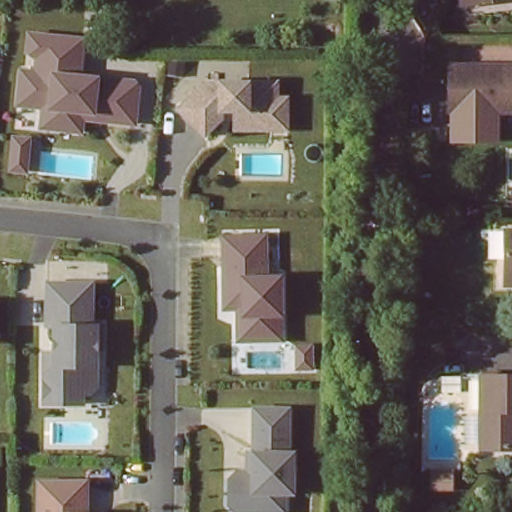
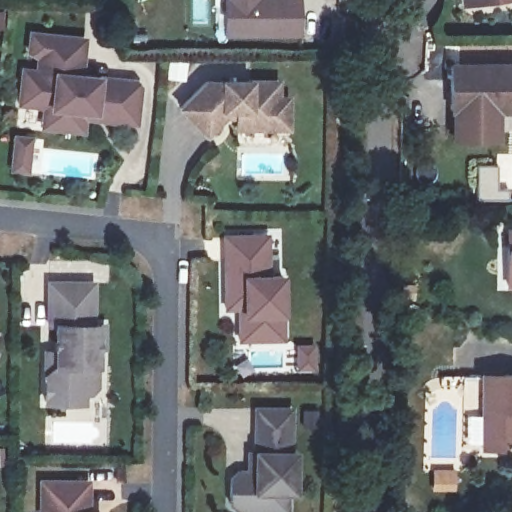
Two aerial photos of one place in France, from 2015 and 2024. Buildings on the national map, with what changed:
new [(225,16),(225,0),(267,0),(267,1),(298,0),(298,39),(233,39),(225,39),(225,16)]
unchanged [(458,0),(512,0),(475,4),(459,6),(458,0)]
unchanged [(81,39),(77,75),(136,81),(133,122),(99,118),(91,109),(83,107),(80,130),(51,126),(53,106),(18,102),(28,33),(81,39)]
unchanged [(452,110),(452,66),(512,66),(512,110),(452,110)]
unchanged [(232,130),(233,120),(224,120),(208,137),(176,109),(203,79),(220,77),(253,79),(280,79),(280,96),(291,96),(291,131),(232,130)]
new [(476,165),(498,164),(499,199),(476,198),(476,165)]
unchanged [(503,283),(503,251),(504,229),(512,230),(512,284),(503,283)]
unchanged [(266,273),(281,273),(283,313),(285,342),(236,342),(236,312),(221,312),(221,236),(266,234),(266,273)]
unchanged [(95,281),(93,323),(99,323),(98,368),(98,390),(87,398),(87,404),(40,403),(41,348),(53,349),(53,327),(43,327),(45,280),(95,281)]
unchanged [(512,374),(512,447),(477,446),(480,372),(512,374)]
unchanged [(296,450),(296,495),(288,495),(288,512),(229,512),(229,476),(246,465),(250,406),(293,406),(291,450),(296,450)]
unchanged [(86,512),(36,512),(36,479),(90,480),(86,512)]

